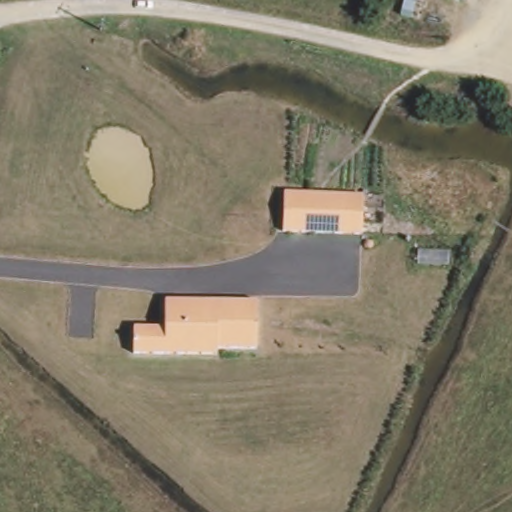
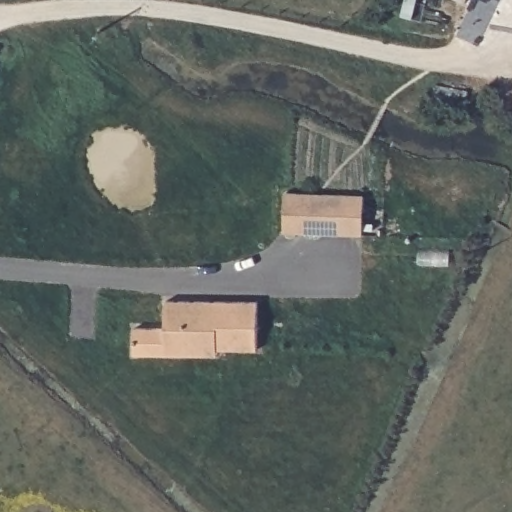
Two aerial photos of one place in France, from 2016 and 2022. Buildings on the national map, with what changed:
unchanged [(465,3),(458,0),(466,0),(465,3)]
unchanged [(364,195),(364,234),(285,233),(285,194),(364,195)]
unchanged [(258,350),(186,349),(186,355),(136,355),(136,328),(166,329),(167,301),(259,302),(258,350)]

